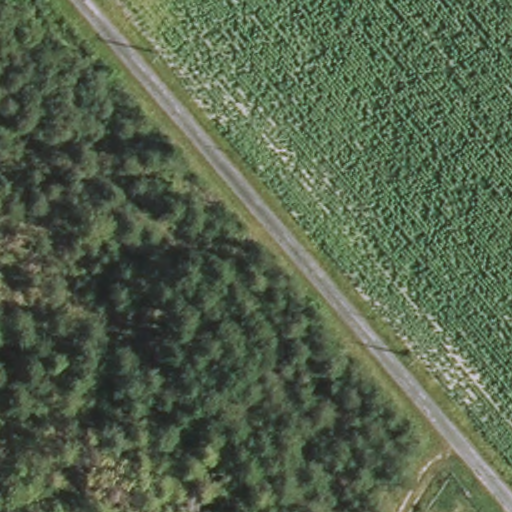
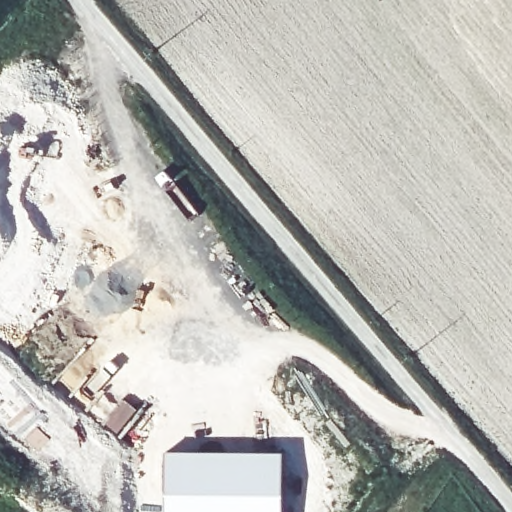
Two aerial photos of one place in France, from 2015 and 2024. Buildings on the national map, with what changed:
new [(122,400),(135,412),(116,435),(101,424),(122,400)]
new [(285,450),(285,512),(164,512),(163,452),(210,450),(285,450)]

